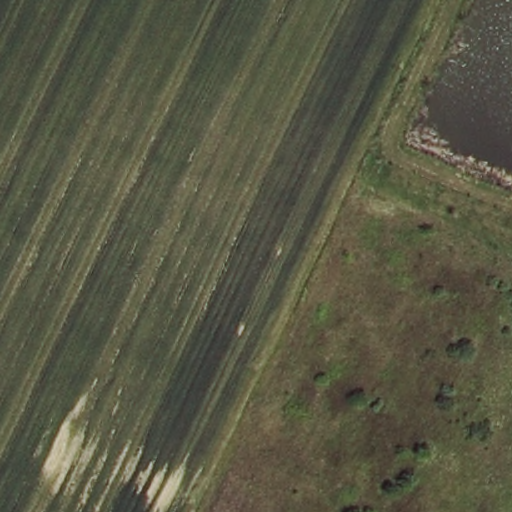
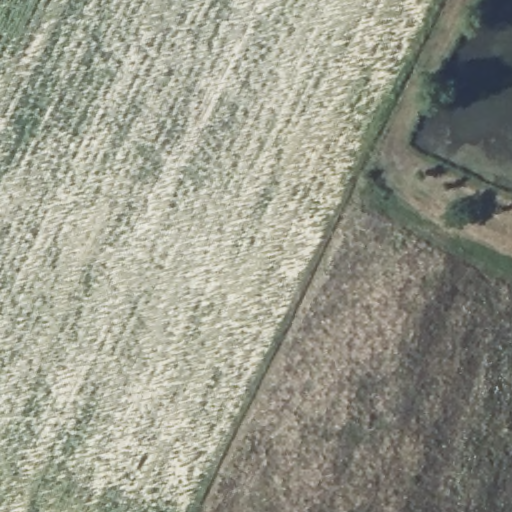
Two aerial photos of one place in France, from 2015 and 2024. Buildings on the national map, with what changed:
[]

